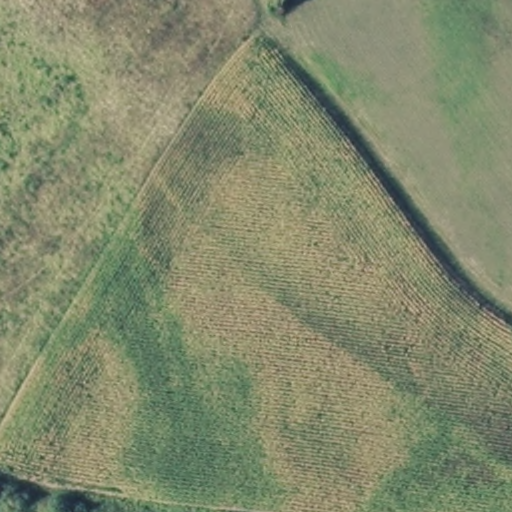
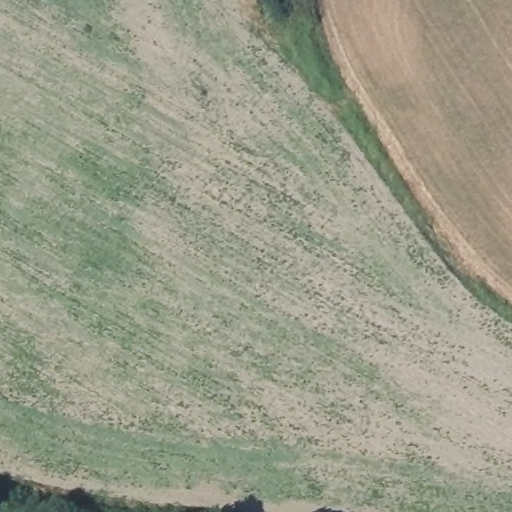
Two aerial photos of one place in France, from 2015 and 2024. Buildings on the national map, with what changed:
[]

